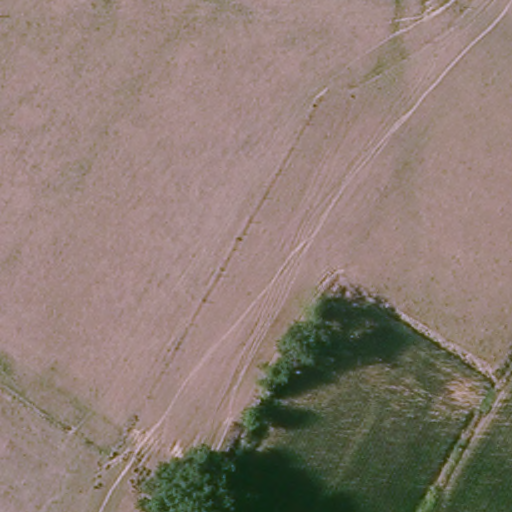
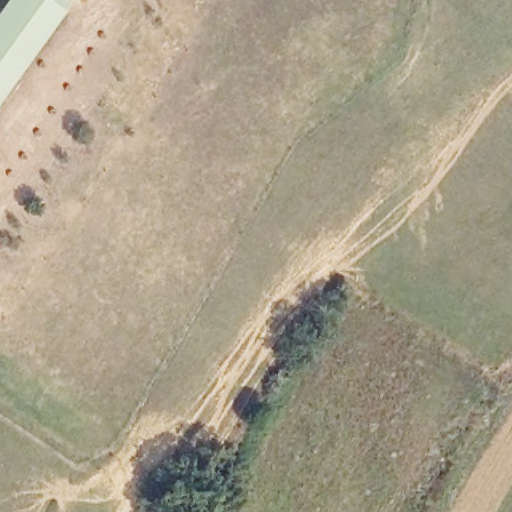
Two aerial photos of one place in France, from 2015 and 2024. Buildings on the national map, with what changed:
new [(52,0),(74,0),(0,102),(0,11),(8,0),(51,0),(52,0)]

